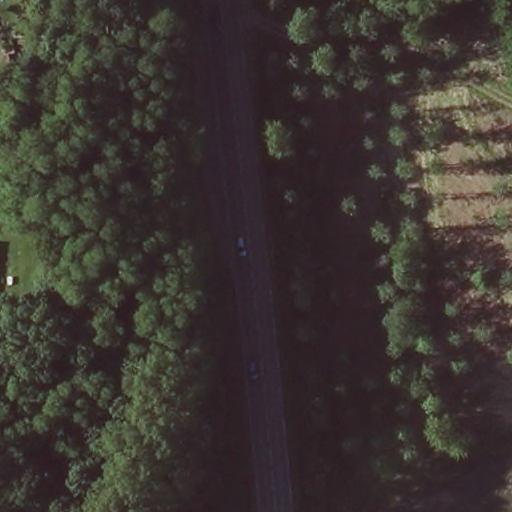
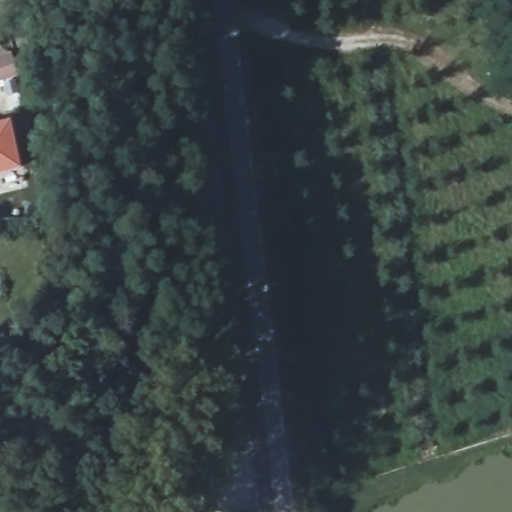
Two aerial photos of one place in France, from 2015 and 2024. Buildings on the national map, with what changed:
new [(19,164),(0,169),(0,124),(10,122),(19,164)]

